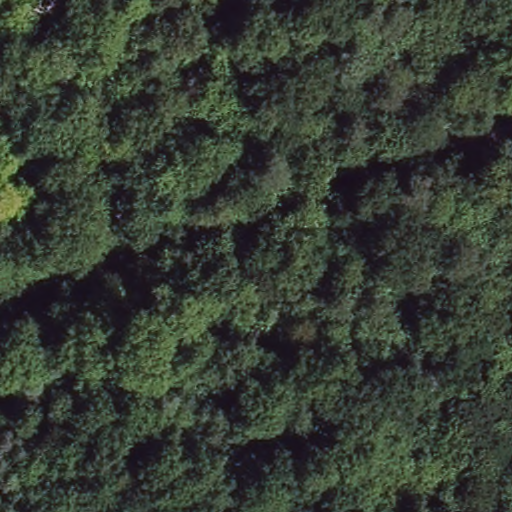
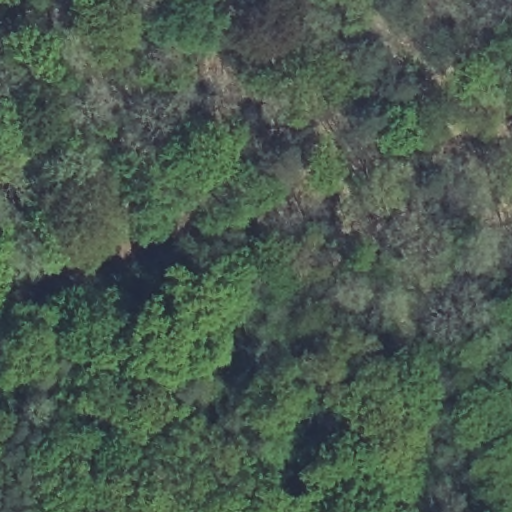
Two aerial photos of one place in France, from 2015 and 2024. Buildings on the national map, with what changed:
[]

